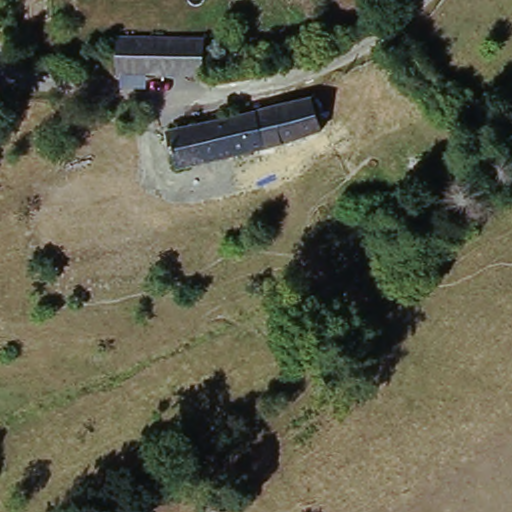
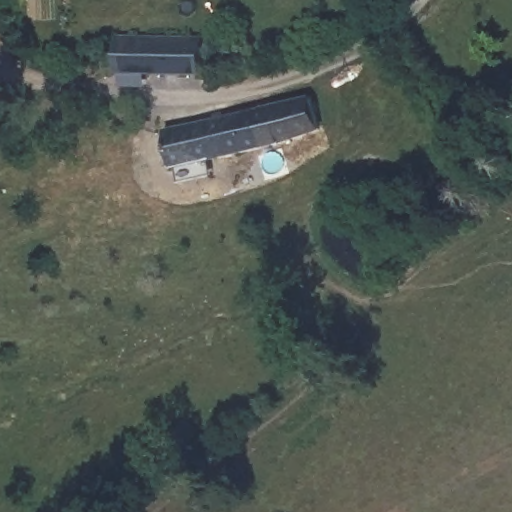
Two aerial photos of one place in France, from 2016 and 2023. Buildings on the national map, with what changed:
unchanged [(163,80),(130,79),(134,42),(215,47),(215,84),(163,80)]
unchanged [(186,140),(270,120),(318,109),(327,140),(308,144),(279,152),(180,175),(172,141),(186,140)]

